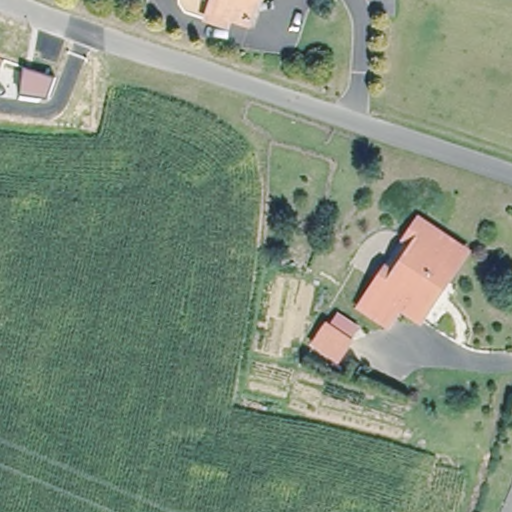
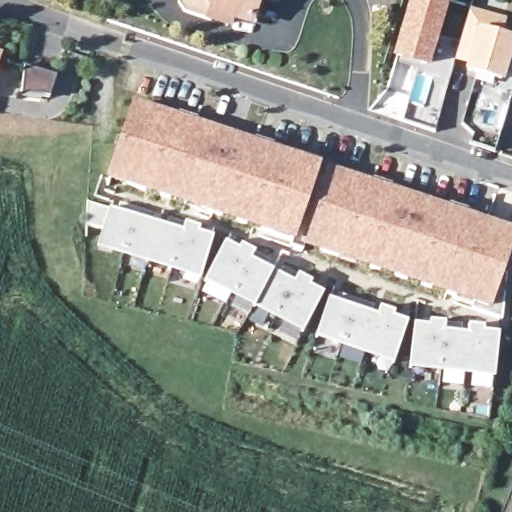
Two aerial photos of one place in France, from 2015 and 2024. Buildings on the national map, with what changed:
unchanged [(249,18),(207,4),(208,0),(255,0),(249,18)]
new [(415,0),(448,0),(428,67),(398,58),(415,0)]
new [(471,12),(504,22),(499,38),(512,42),(512,46),(502,81),(469,72),(472,64),(457,60),(471,12)]
unchanged [(0,67),(0,54),(4,55),(0,67)]
new [(293,243),(105,180),(133,100),(318,162),(293,243)]
new [(503,273),(507,275),(502,318),(488,311),(299,246),(327,166),(512,229),(512,241),(503,273)]
new [(86,224),(88,201),(109,209),(182,233),(184,222),(199,226),(198,233),(212,237),(200,277),(97,247),(103,228),(86,224)]
demolished [(474,248),(429,315),(409,301),(396,319),(371,303),(396,265),(403,272),(424,240),(417,234),(429,217),(474,248)]
new [(293,284),(299,274),(311,280),(309,286),(322,293),(300,330),(253,306),(205,282),(225,242),(239,250),(242,244),(254,252),(249,259),(271,272),(293,284)]
new [(379,307),(394,313),(393,317),(405,322),(392,363),(317,337),(329,299),(377,317),(379,307)]
new [(468,334),(469,325),(483,327),(483,332),(497,334),(493,376),(412,369),(416,325),(429,326),(430,321),(444,322),(443,333),(468,334)]
demolished [(336,362),(312,344),(326,323),(328,324),(352,340),(336,362)]

